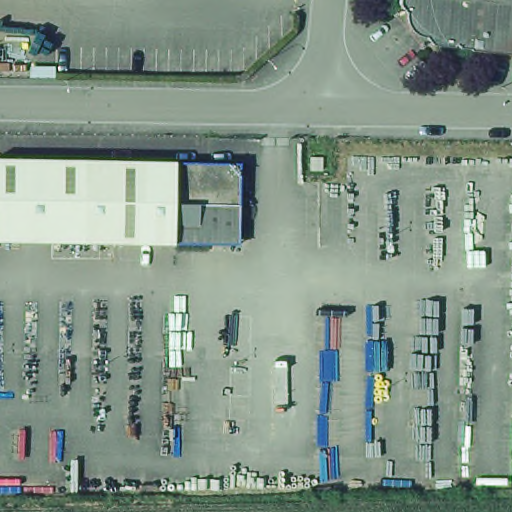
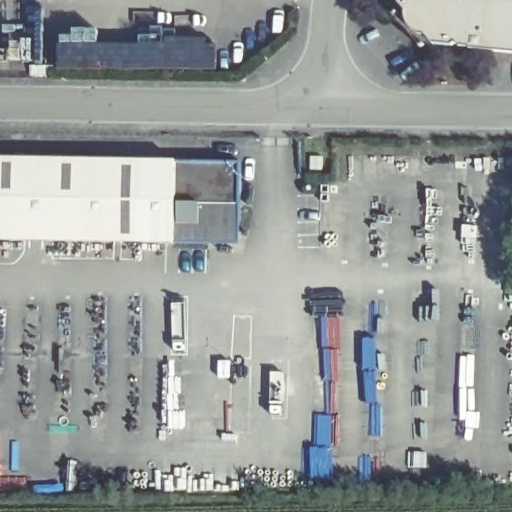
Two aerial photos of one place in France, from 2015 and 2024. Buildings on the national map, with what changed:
unchanged [(467,49),(467,47),(452,46),(451,50),(429,48),(422,36),(417,36),(411,32),(407,26),(406,20),(407,15),(400,5),(400,0),(512,0),(512,53),(467,49)]
unchanged [(179,166),(241,168),(241,172),(240,205),(239,211),(238,237),(238,242),(219,237),(208,234),(207,237),(202,248),(175,248),(117,247),(0,245),(0,163),(119,165),(179,166)]
unchanged [(307,163),(317,163),(317,173),(317,175),(306,176),(306,173),(307,163)]

